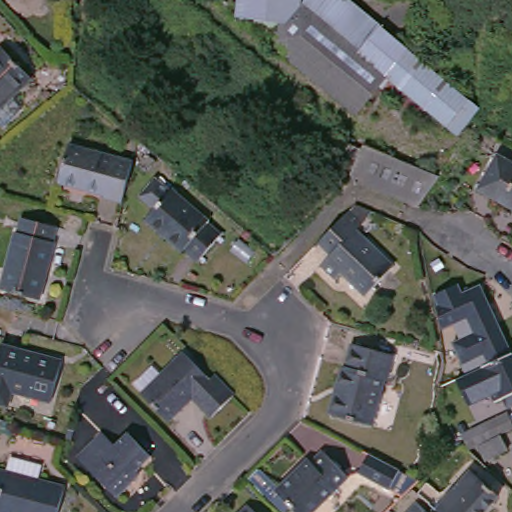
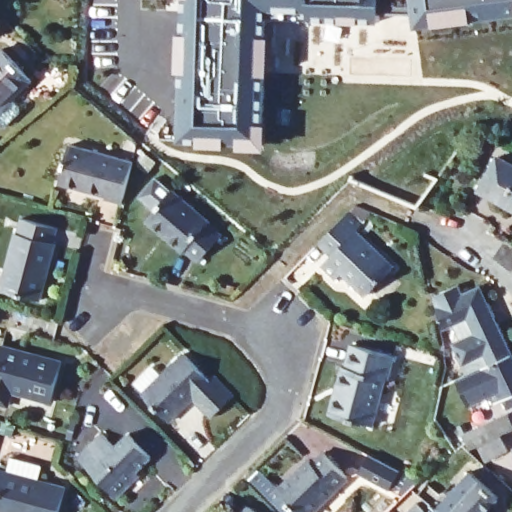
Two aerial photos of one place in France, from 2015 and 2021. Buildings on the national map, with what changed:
new [(414,29),(412,12),(379,10),(378,26),(309,23),(309,12),(270,12),(266,143),(179,142),(183,0),(512,0),(512,17),(414,29)]
demolished [(374,91),(351,117),(234,20),(236,0),(286,0),(383,81),(374,91)]
demolished [(286,0),(340,0),(404,53),(383,81),(286,0)]
unchanged [(0,99),(0,48),(27,75),(0,99)]
demolished [(388,102),(397,92),(383,81),(404,53),(475,113),(454,140),(422,113),(414,122),(388,102)]
unchanged [(106,202),(107,200),(61,187),(71,148),(133,166),(122,207),(106,202)]
demolished [(358,184),(371,150),(446,181),(424,211),(358,184)]
unchanged [(512,169),(512,212),(480,194),(499,161),(512,169)]
unchanged [(197,266),(184,254),(182,255),(144,224),(153,213),(139,200),(155,181),(207,226),(206,228),(219,241),(197,266)]
unchanged [(364,228),(357,235),(393,273),(366,299),(343,277),(335,283),(321,270),(332,258),(321,244),(352,214),(364,228)]
unchanged [(53,245),(56,248),(41,304),(2,294),(17,238),(19,237),(23,223),(57,232),(53,245)]
unchanged [(490,364),(486,367),(473,340),(467,343),(460,329),(465,326),(458,311),(484,298),(492,312),(494,313),(512,350),(512,354),(490,364)]
unchanged [(17,393),(13,407),(0,404),(0,369),(6,347),(65,362),(54,402),(17,393)]
unchanged [(387,382),(384,383),(372,429),(331,418),(344,370),(352,347),(393,359),(387,382)]
unchanged [(497,400),(494,394),(469,405),(458,379),(482,369),(486,367),(490,364),(512,354),(512,393),(497,400)]
unchanged [(234,399),(213,420),(194,402),(171,425),(144,399),(145,396),(138,387),(155,369),(164,378),(186,357),(212,383),(215,380),(234,399)]
unchanged [(491,459),(484,444),(473,449),(467,434),(512,413),(512,430),(506,433),(512,449),(491,459)]
unchanged [(151,456),(128,480),(130,483),(116,496),(79,458),(103,433),(116,446),(129,433),(151,456)]
unchanged [(350,477),(316,512),(299,512),(280,492),(312,460),(318,461),(326,453),(350,477)]
unchanged [(402,474),(392,493),(362,477),(372,458),(402,474)]
unchanged [(12,459),(44,468),(41,482),(66,489),(60,512),(0,512),(0,471),(8,473),(12,459)]
unchanged [(424,497),(433,486),(447,497),(454,491),(457,494),(464,488),(460,485),(465,479),(469,481),(477,474),(506,501),(496,512),(440,512),(424,497)]
unchanged [(256,512),(245,512),(251,506),(256,512)]
unchanged [(424,509),(427,512),(421,512),(424,509)]

